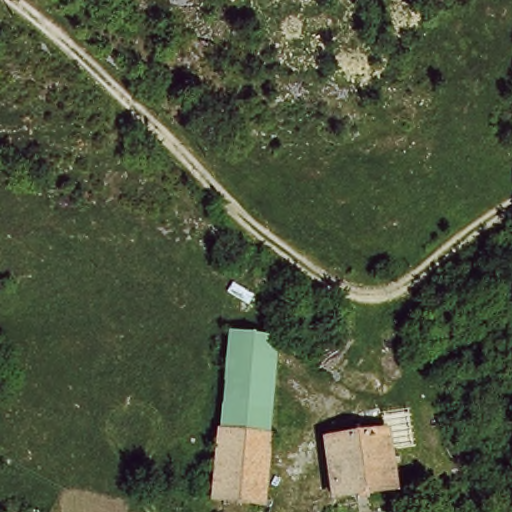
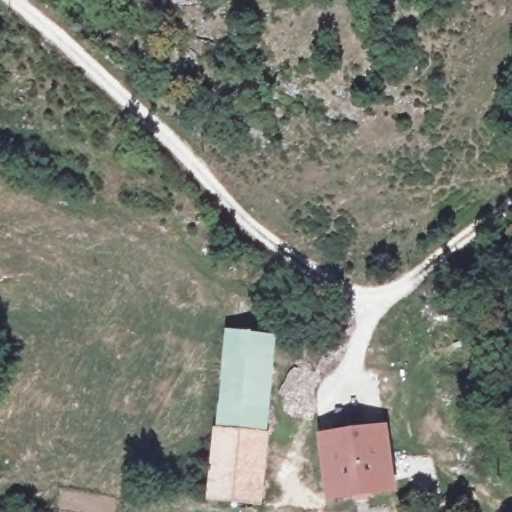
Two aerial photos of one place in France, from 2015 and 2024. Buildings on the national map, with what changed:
unchanged [(268,438),(217,439),(220,386),(222,344),(272,343),(270,392),(268,438)]
unchanged [(322,441),(380,433),(388,488),(327,496),(322,441)]
unchanged [(217,439),(268,438),(266,497),(213,497),(217,439)]
unchanged [(499,495),(512,497),(512,512),(493,512),(499,495)]

